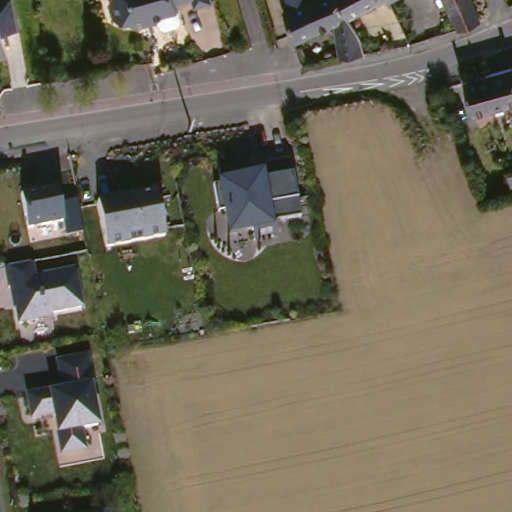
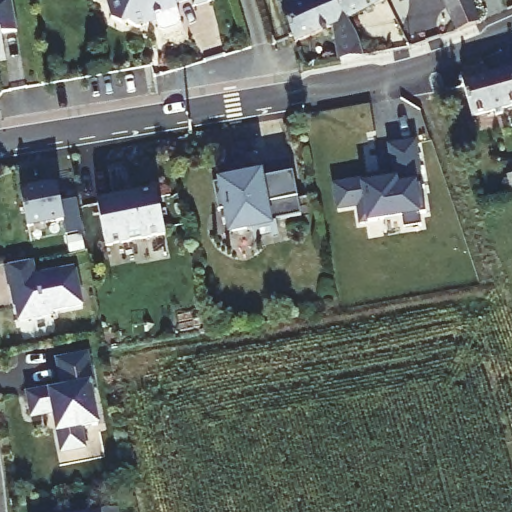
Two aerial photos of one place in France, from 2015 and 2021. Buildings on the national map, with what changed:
unchanged [(17,0),(22,29),(7,31),(11,57),(0,59),(0,0),(17,0)]
unchanged [(172,26),(167,24),(164,10),(158,20),(141,24),(141,22),(140,19),(126,22),(118,17),(115,5),(114,0),(185,0),(186,5),(189,19),(186,24),(172,26)]
unchanged [(196,0),(216,0),(197,5),(196,0)]
unchanged [(318,0),(341,0),(354,21),(367,41),(369,58),(342,62),(336,30),(302,49),(287,15),(318,0)]
unchanged [(354,21),(341,0),(391,0),(392,2),(354,21)]
unchanged [(391,0),(396,0),(392,2),(391,0)]
unchanged [(461,35),(449,0),(479,0),(488,25),(461,35)]
unchanged [(512,73),(512,109),(479,119),(469,84),(486,80),(502,75),(512,73)]
new [(426,211),(421,215),(422,226),(404,229),(403,218),(368,224),(367,220),(361,222),(359,202),(337,206),(334,187),(369,181),(368,176),(387,174),(388,181),(395,180),(390,146),(415,142),(426,211)]
unchanged [(217,182),(223,181),(219,170),(239,165),(245,172),(263,170),(259,161),(290,158),(300,216),(278,222),(279,238),(255,239),(255,230),(227,236),(217,182)]
unchanged [(512,190),(508,176),(512,175),(512,190)]
unchanged [(69,235),(65,223),(31,230),(22,192),(58,185),(62,202),(76,199),(83,229),(69,235)]
unchanged [(167,235),(106,246),(97,202),(155,190),(167,235)]
unchanged [(52,311),(52,314),(18,320),(7,267),(33,262),(36,275),(75,267),(85,305),(52,311)]
unchanged [(27,416),(20,386),(56,377),(51,354),(81,345),(100,424),(82,428),(85,446),(60,451),(50,411),(27,416)]

